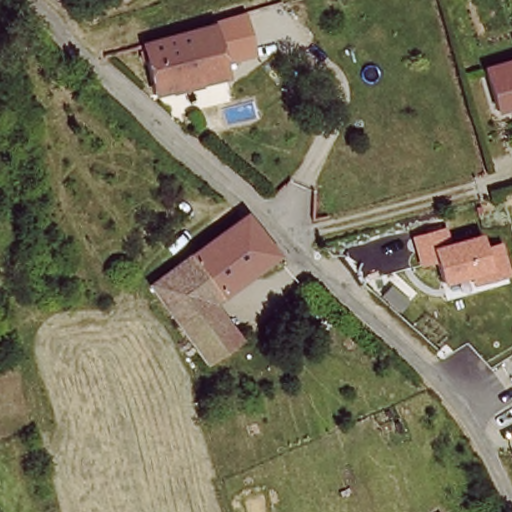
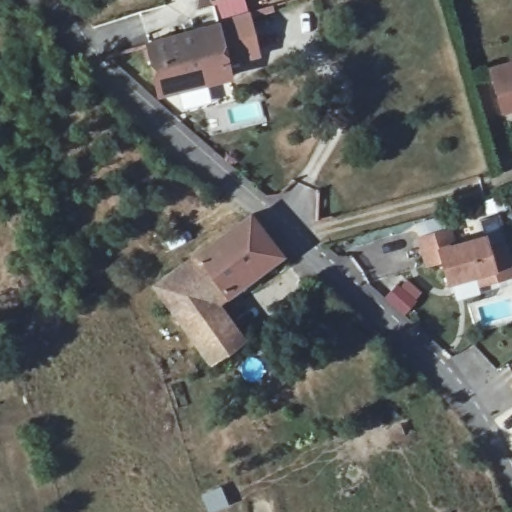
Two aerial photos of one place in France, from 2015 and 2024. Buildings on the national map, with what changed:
unchanged [(149,41),(217,23),(229,68),(161,85),(149,41)]
unchanged [(512,69),(512,115),(506,117),(497,73),(512,69)]
unchanged [(247,216),(279,257),(219,302),(243,338),(211,359),(195,337),(170,302),(156,282),(247,216)]
unchanged [(487,234),(491,248),(509,243),(512,256),(512,280),(479,289),(476,276),(446,286),(440,266),(426,269),(418,237),(452,227),(457,243),(487,234)]

